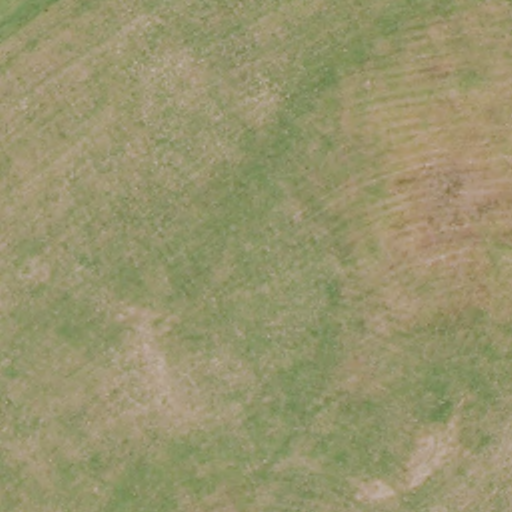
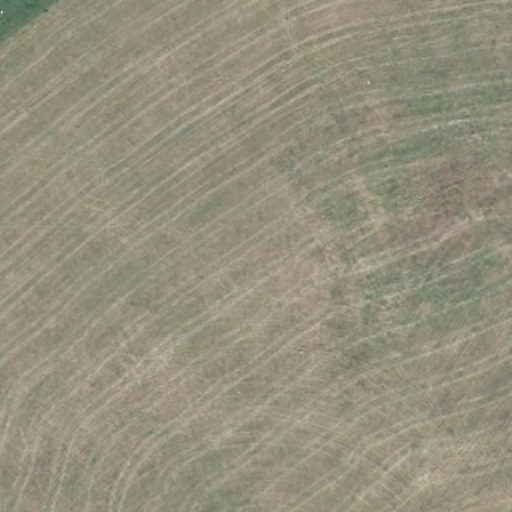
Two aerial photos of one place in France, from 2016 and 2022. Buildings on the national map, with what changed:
[]

